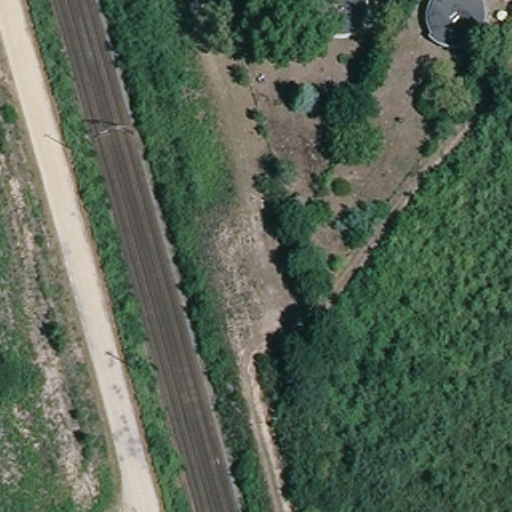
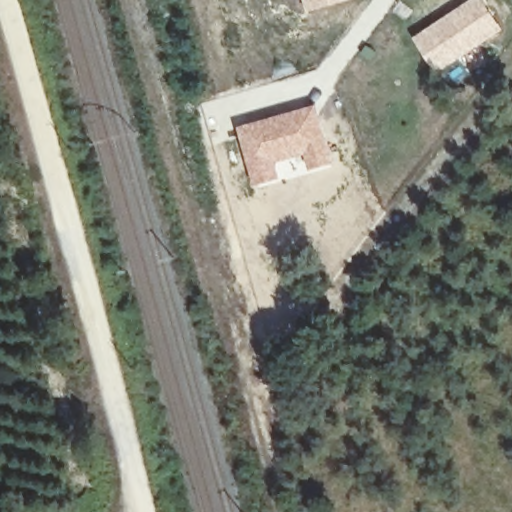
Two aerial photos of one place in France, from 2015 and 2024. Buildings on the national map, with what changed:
demolished [(358,1),(359,7),(359,13),(358,18),(353,29),(353,31),(348,35),(338,39),(331,39),(320,35),(312,29),(307,22),(304,14),(304,8),(305,0),(357,0),(358,1)]
new [(310,0),(349,0),(313,10),(310,0)]
new [(475,0),(484,0),(504,29),(438,73),(415,39),(475,0)]
demolished [(479,7),(480,13),(481,22),(480,28),(476,36),(471,42),(461,48),(455,49),(447,49),(440,47),(428,40),(430,37),(427,24),(427,13),(430,5),(434,0),(473,0),(479,7)]
new [(277,162),(280,178),(253,185),(238,127),(318,103),(335,163),(310,171),(306,154),(277,162)]

